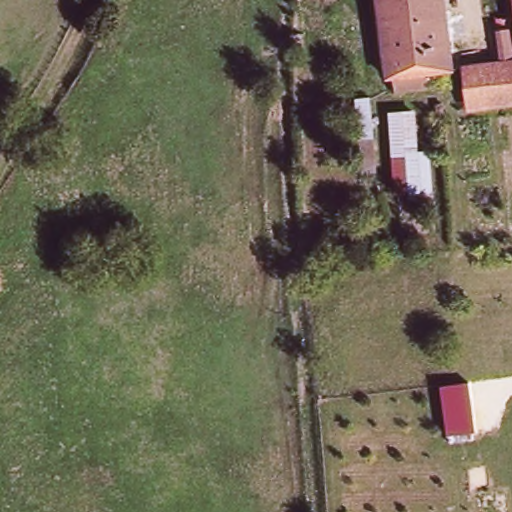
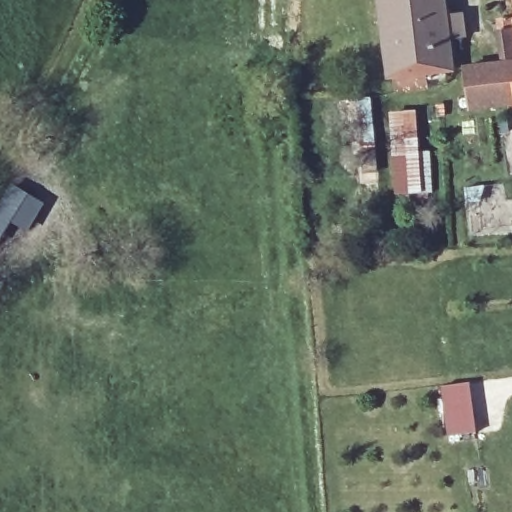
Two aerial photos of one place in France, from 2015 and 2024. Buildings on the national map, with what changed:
unchanged [(427,75),(430,90),(397,93),(396,85),(389,85),(380,0),(444,0),(452,72),(427,75)]
unchanged [(470,70),(508,65),(506,20),(512,19),(512,105),(476,110),(470,70)]
unchanged [(417,112),(420,152),(430,152),(433,196),(393,198),(388,114),(417,112)]
new [(43,202),(31,232),(13,224),(4,246),(0,244),(0,195),(7,198),(11,187),(35,196),(33,200),(43,202)]
unchanged [(470,383),(477,433),(448,436),(441,386),(470,383)]

